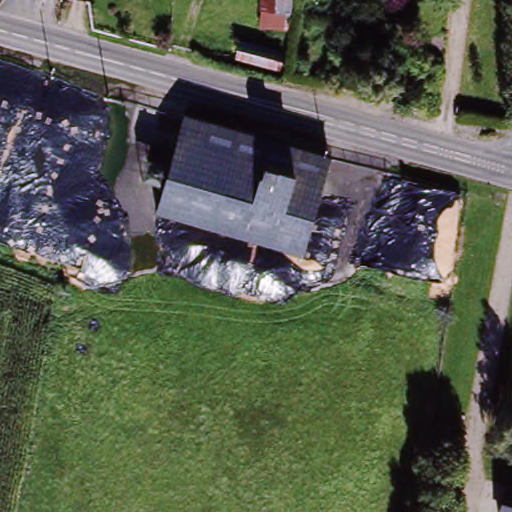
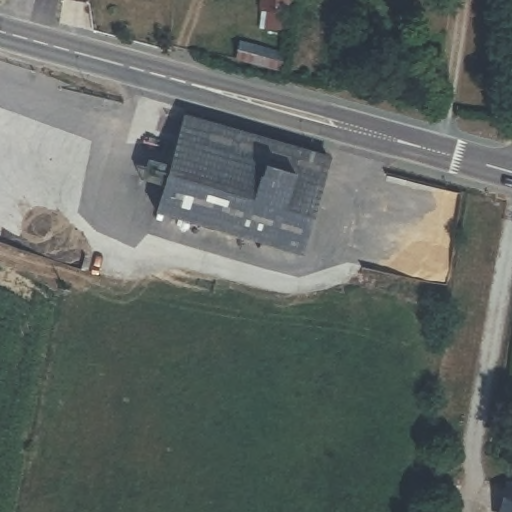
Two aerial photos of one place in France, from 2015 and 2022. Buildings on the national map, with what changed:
unchanged [(263,0),(293,0),(291,16),(262,12),(263,0)]
unchanged [(235,68),(239,49),(280,58),(275,79),(235,68)]
unchanged [(330,160),(304,256),(159,215),(185,121),(330,160)]
unchanged [(502,490),(512,493),(512,512),(496,512),(502,490)]

